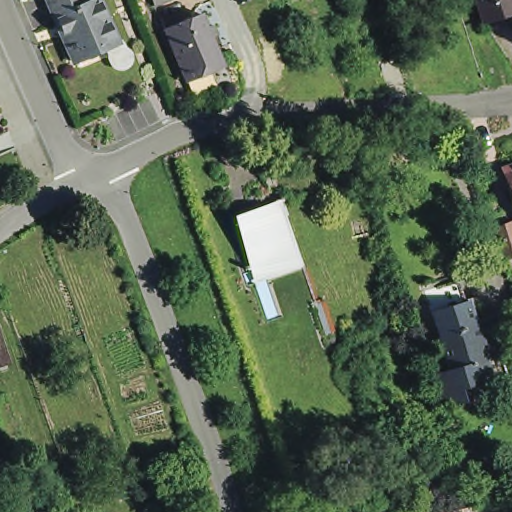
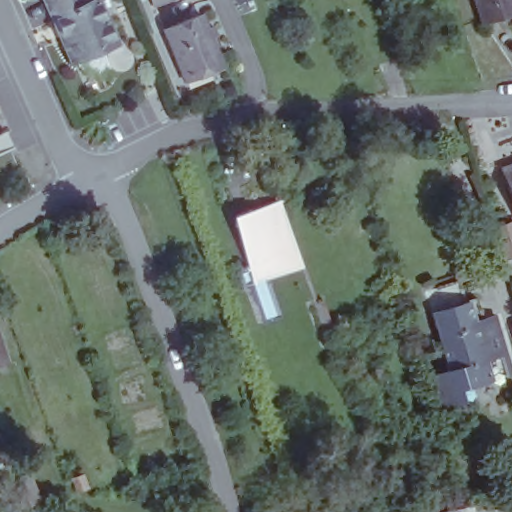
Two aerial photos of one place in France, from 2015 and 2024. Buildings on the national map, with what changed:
unchanged [(79,7),(90,3),(106,42),(105,50),(68,66),(48,21),(51,20),(43,0),(76,0),(79,7)]
unchanged [(159,10),(155,0),(185,0),(159,10)]
unchanged [(512,15),(488,22),(481,0),(512,0),(512,15)]
unchanged [(185,81),(181,73),(163,28),(199,12),(217,59),(221,67),(185,81)]
unchanged [(512,163),(512,176),(508,165),(512,163)]
unchanged [(265,270),(266,273),(251,279),(249,276),(258,272),(242,227),(277,214),(283,212),(285,219),(279,222),(292,261),(265,270)]
unchanged [(512,216),(512,253),(506,255),(494,222),(512,216)]
unchanged [(497,362),(502,378),(459,391),(457,385),(435,391),(425,358),(443,353),(425,297),(471,282),(484,321),(489,320),(496,317),(509,357),(502,360),(497,362)]
unchanged [(87,485),(75,488),(72,477),(83,473),(87,485)]
unchanged [(458,505),(460,512),(424,512),(440,508),(458,505)]

